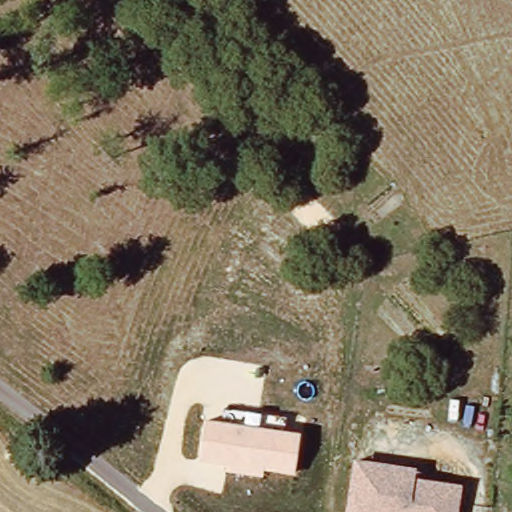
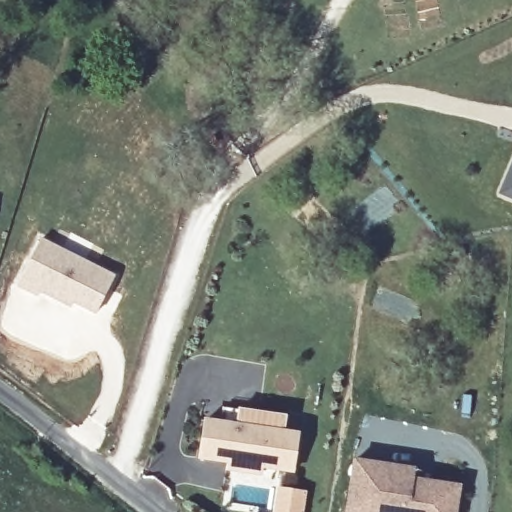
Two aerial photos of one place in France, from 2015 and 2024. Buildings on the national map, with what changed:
new [(38,237),(110,276),(91,311),(60,294),(58,299),(36,287),(34,292),(14,282),(38,237)]
unchanged [(222,421),(223,409),(283,417),(282,430),(300,432),(295,473),(264,469),(264,476),(227,471),(228,463),(199,459),(204,420),(222,421)]
unchanged [(416,465),(414,476),(462,483),(458,512),(343,512),(351,456),(416,465)]
new [(276,490),(301,493),(299,512),(273,512),(276,490)]

